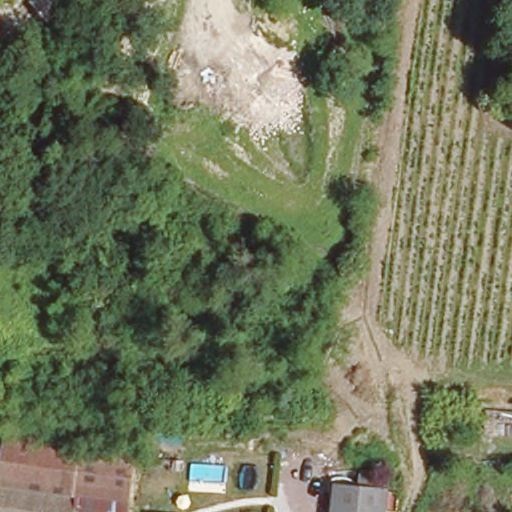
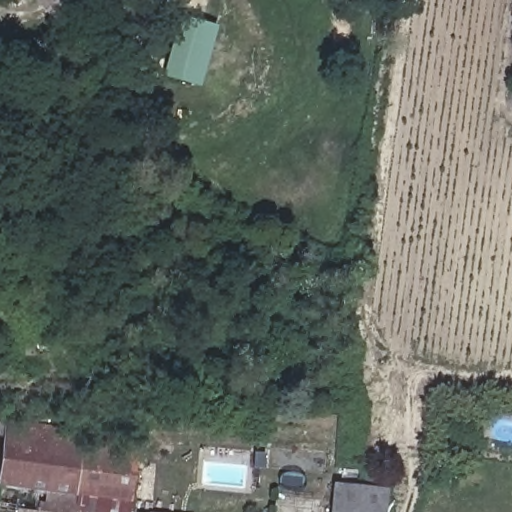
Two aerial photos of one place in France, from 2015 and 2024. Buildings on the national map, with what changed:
new [(181,17),(217,26),(199,88),(165,78),(181,17)]
unchanged [(134,439),(126,512),(5,512),(10,447),(14,426),(134,439)]
unchanged [(352,481),(355,466),(387,469),(384,512),(330,512),(335,481),(352,481)]

